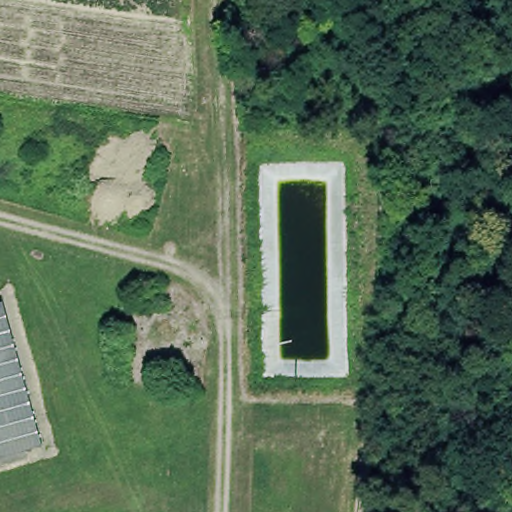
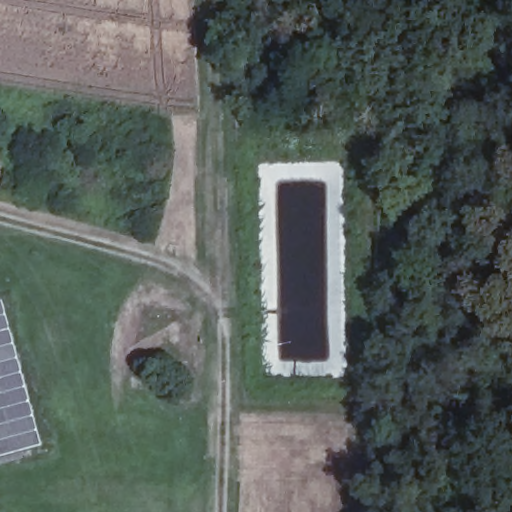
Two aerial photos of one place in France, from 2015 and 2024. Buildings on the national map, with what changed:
unchanged [(48,442),(0,452),(0,289),(7,287),(48,442)]

